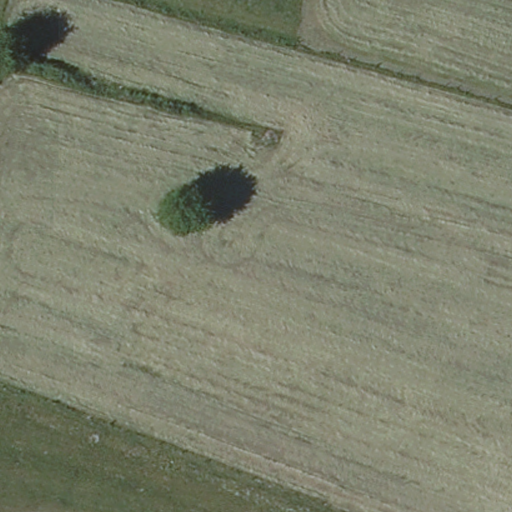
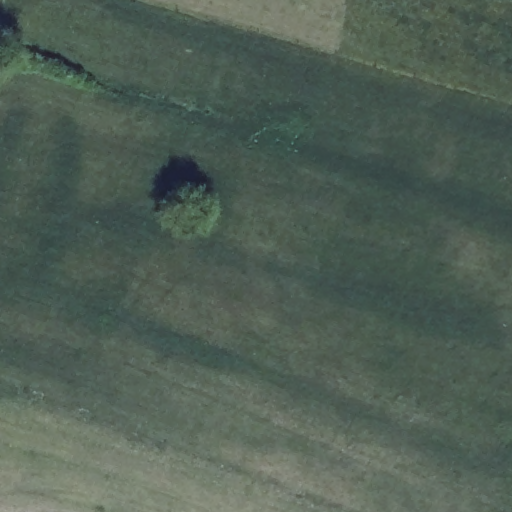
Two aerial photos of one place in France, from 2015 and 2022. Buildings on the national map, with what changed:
[]

